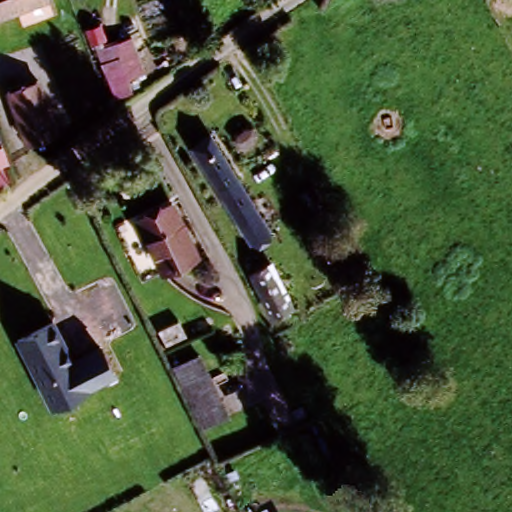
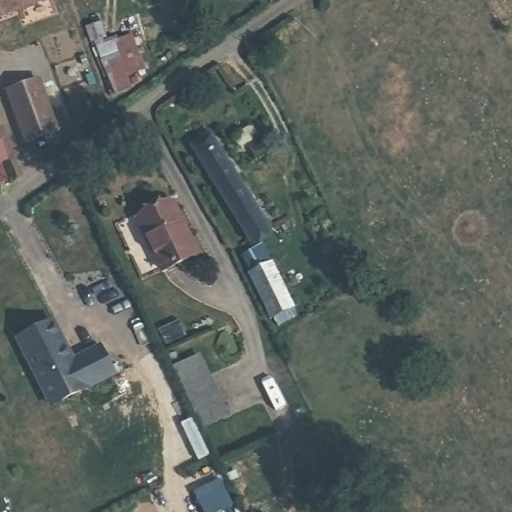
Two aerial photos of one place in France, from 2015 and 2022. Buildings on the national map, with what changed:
unchanged [(0,0),(32,0),(0,12),(0,0)]
unchanged [(136,70),(124,77),(129,88),(110,95),(95,49),(128,39),(136,70)]
unchanged [(56,133),(29,145),(7,90),(40,77),(56,133)]
unchanged [(230,217),(188,150),(209,137),(267,231),(247,244),(237,250),(220,224),(230,217)]
unchanged [(0,141),(7,160),(0,162),(0,141)]
unchanged [(195,253),(162,270),(135,220),(169,202),(195,253)]
unchanged [(268,317),(242,262),(262,252),(290,307),(268,317)]
unchanged [(53,319),(73,356),(99,344),(115,377),(47,411),(12,337),(53,319)]
unchanged [(198,354),(230,417),(200,430),(170,367),(198,354)]

